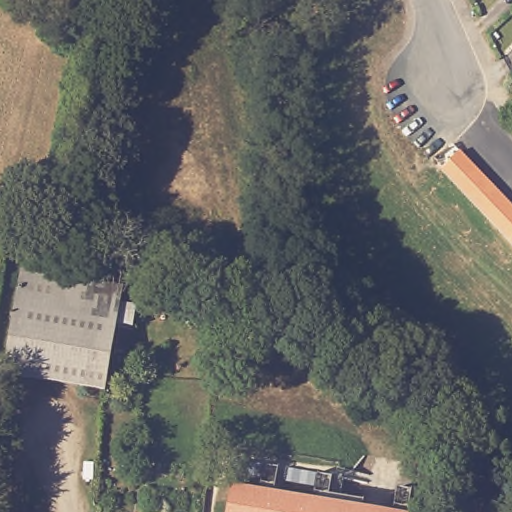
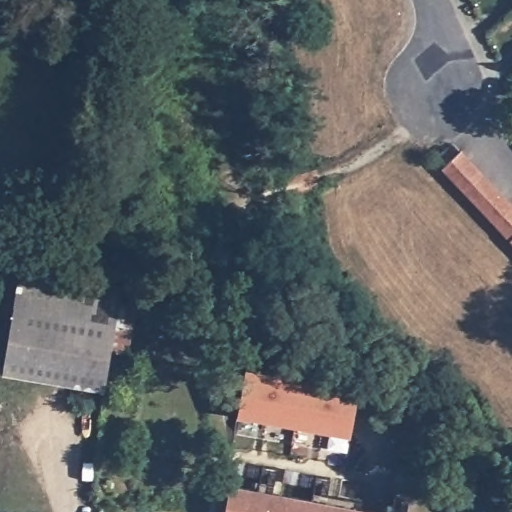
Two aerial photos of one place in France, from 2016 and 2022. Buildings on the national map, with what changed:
unchanged [(512,205),(512,244),(441,170),(461,151),(512,205)]
unchanged [(111,351),(104,390),(4,372),(21,270),(122,287),(119,305),(136,307),(132,327),(127,354),(111,351)]
unchanged [(184,308),(214,313),(211,327),(182,322),(184,308)]
new [(239,370),(352,387),(345,434),(232,416),(239,370)]
unchanged [(411,453),(427,459),(422,475),(406,469),(411,453)]
unchanged [(383,512),(224,512),(228,484),(383,512)]

